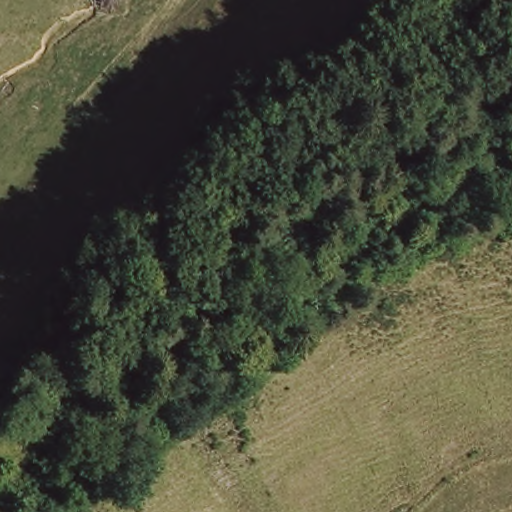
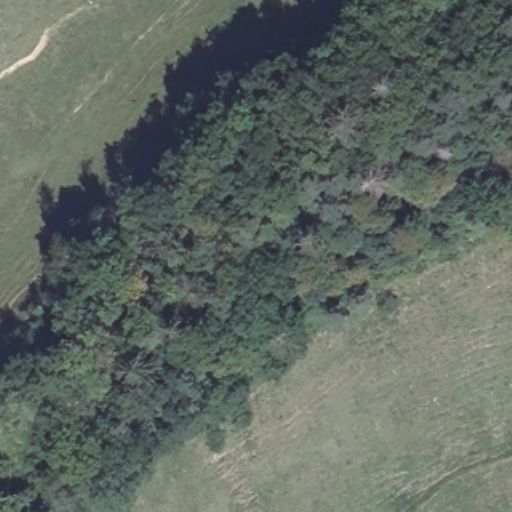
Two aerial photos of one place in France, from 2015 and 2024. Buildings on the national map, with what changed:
[]

